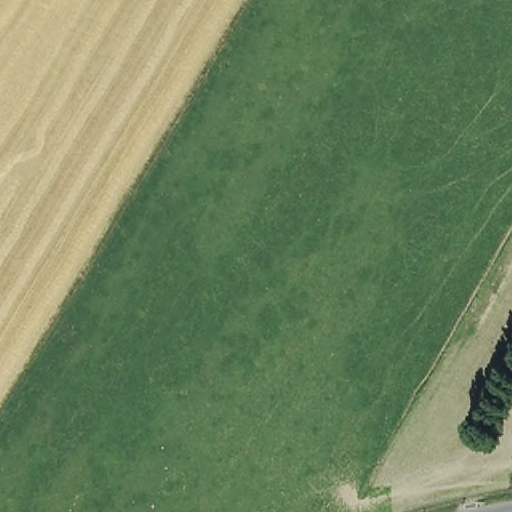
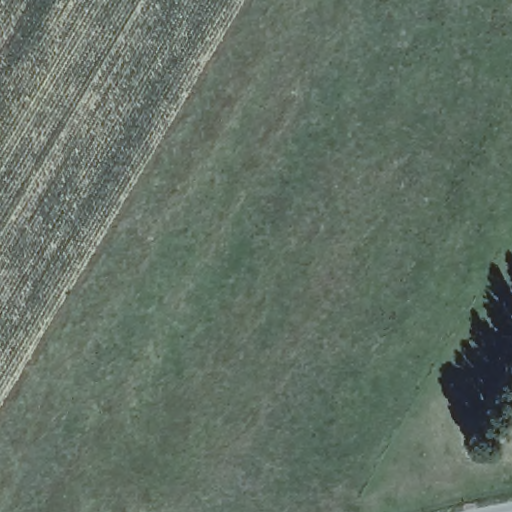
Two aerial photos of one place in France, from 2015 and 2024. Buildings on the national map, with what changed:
[]

